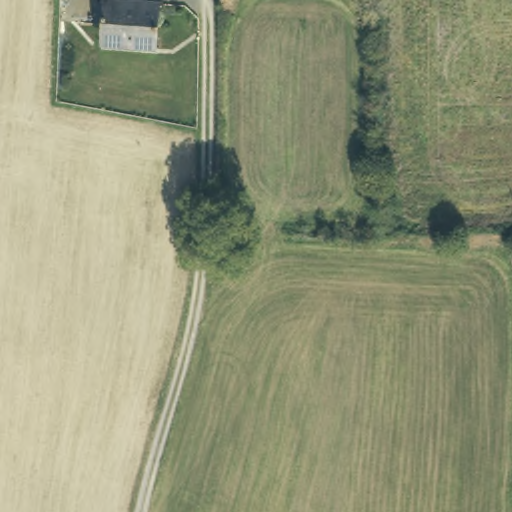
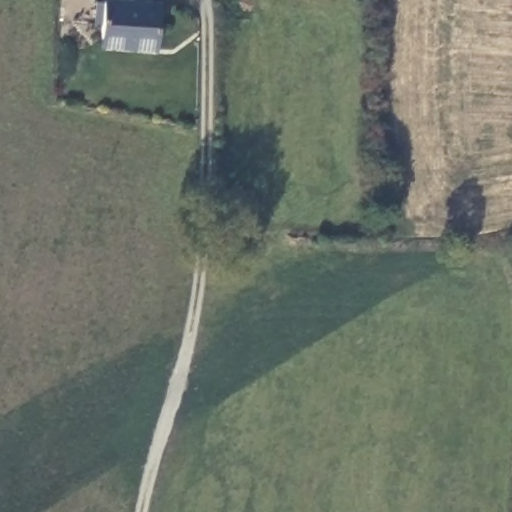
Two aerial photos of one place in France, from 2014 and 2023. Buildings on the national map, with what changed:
unchanged [(150,50),(131,50),(131,40),(94,39),(95,0),(124,0),(153,1),(150,50)]

